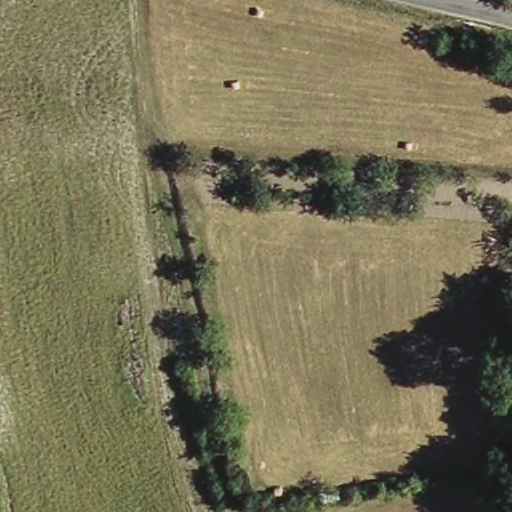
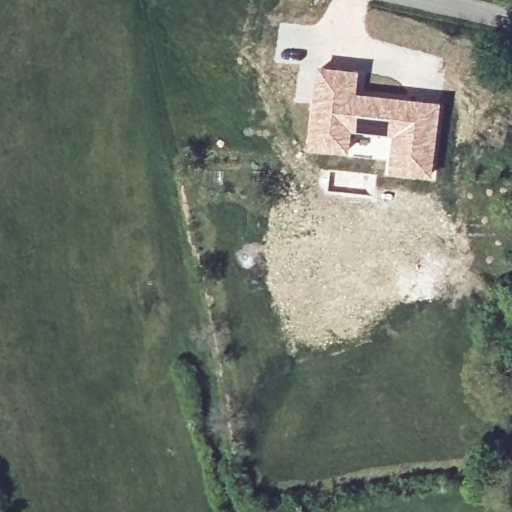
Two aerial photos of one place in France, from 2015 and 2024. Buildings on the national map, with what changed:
new [(318,64),(361,68),(359,90),(442,101),(433,180),(386,174),(392,134),(355,129),(351,152),(307,147),(318,64)]

